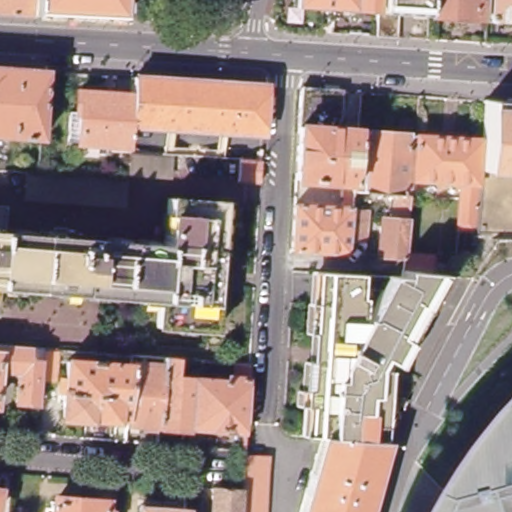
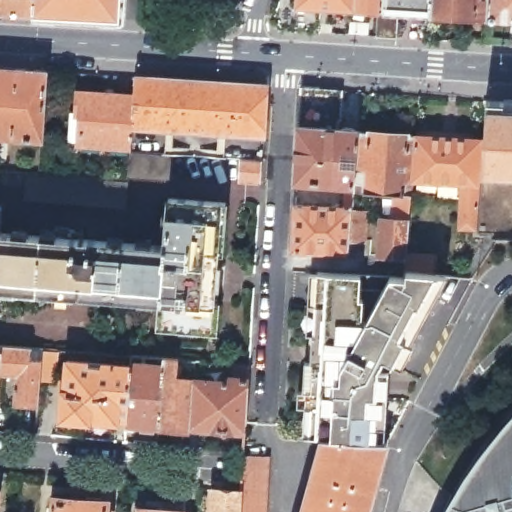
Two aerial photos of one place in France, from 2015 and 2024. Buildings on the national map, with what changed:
unchanged [(130,13),(37,9),(0,6),(0,0),(130,0),(130,13)]
unchanged [(280,27),(271,14),(275,0),(380,0),(380,9),(353,6),(353,8),(321,6),(319,30),(280,27)]
unchanged [(380,9),(380,0),(430,0),(430,11),(400,10),(397,35),(378,34),(380,9)]
unchanged [(430,11),(430,0),(487,0),(486,15),(430,11)]
unchanged [(487,0),(512,0),(512,17),(486,15),(487,0)]
unchanged [(42,136),(0,132),(0,65),(49,68),(49,75),(44,130),(42,136)]
unchanged [(275,83),(272,132),(140,124),(142,93),(144,74),(275,83)]
unchanged [(140,124),(139,144),(75,139),(77,109),(85,110),(87,89),(142,93),(140,124)]
unchanged [(300,181),(306,90),(346,93),(344,120),(341,120),(340,132),(362,134),(357,186),(351,185),(300,181)]
unchanged [(408,275),(410,259),(382,257),(386,220),(395,221),(397,196),(357,194),(357,186),(362,134),(412,137),(412,128),(406,127),(407,97),(422,99),(419,137),(415,195),(410,257),(440,259),(439,276),(478,278),(481,287),(453,339),(439,360),(418,387),(412,398),(404,413),(400,422),(393,444),(326,440),(316,440),(317,410),(310,410),(311,395),(315,395),(322,273),(408,278),(408,275)]
unchanged [(512,105),(512,244),(499,244),(499,239),(478,239),(478,232),(485,142),(488,103),(512,105)]
unchanged [(478,232),(462,231),(465,200),(415,195),(419,137),(485,142),(478,232)]
unchanged [(263,185),(242,183),(244,162),(265,164),(263,185)]
unchanged [(370,226),(378,226),(377,232),(370,232),(369,243),(352,241),(351,255),(298,253),(296,252),(298,206),(346,210),(347,189),(351,185),(357,186),(357,194),(355,213),(372,215),(370,226)]
unchanged [(1,230),(44,233),(44,228),(80,231),(79,235),(167,242),(171,195),(230,200),(226,246),(221,246),(217,301),(221,301),(219,330),(161,325),(163,297),(0,285),(0,204),(3,204),(1,230)]
unchanged [(46,345),(63,346),(61,370),(44,368),(42,400),(20,398),(22,371),(6,370),(0,369),(0,341),(36,343),(35,355),(45,355),(46,345)]
unchanged [(182,355),(181,373),(200,375),(196,422),(162,420),(166,363),(167,354),(182,355)]
unchanged [(131,415),(121,414),(121,416),(67,412),(72,355),(135,360),(131,415)]
unchanged [(201,356),(200,364),(183,363),(184,355),(201,356)]
unchanged [(166,363),(162,420),(130,417),(131,415),(135,360),(166,363)]
unchanged [(234,378),(240,372),(241,360),(253,360),(250,427),(196,422),(200,375),(234,378)]
unchanged [(454,512),(459,500),(484,455),(512,417),(512,512),(454,512)]
unchanged [(375,512),(306,512),(326,440),(393,444),(375,512)]
unchanged [(273,465),(271,512),(245,512),(247,487),(247,464),(273,465)]
unchanged [(4,512),(0,512),(0,481),(9,482),(4,512)]
unchanged [(245,512),(218,512),(220,485),(247,487),(245,512)]
unchanged [(106,498),(106,505),(110,506),(109,512),(58,512),(59,502),(90,504),(91,496),(106,498)]
unchanged [(188,512),(143,512),(144,503),(189,506),(188,512)]

